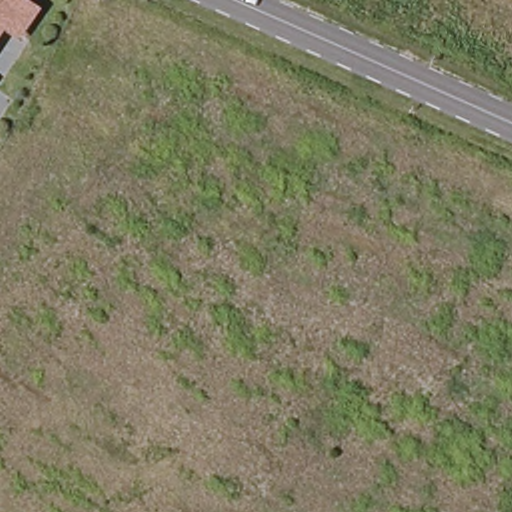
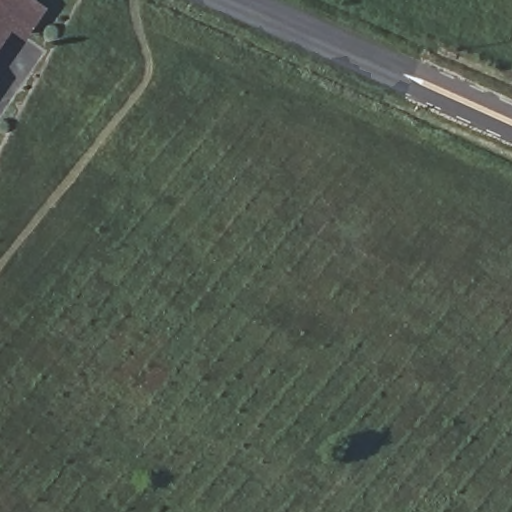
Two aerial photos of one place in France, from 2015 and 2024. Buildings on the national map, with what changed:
unchanged [(22,39),(7,30),(0,40),(0,0),(17,0),(39,14),(22,39)]

